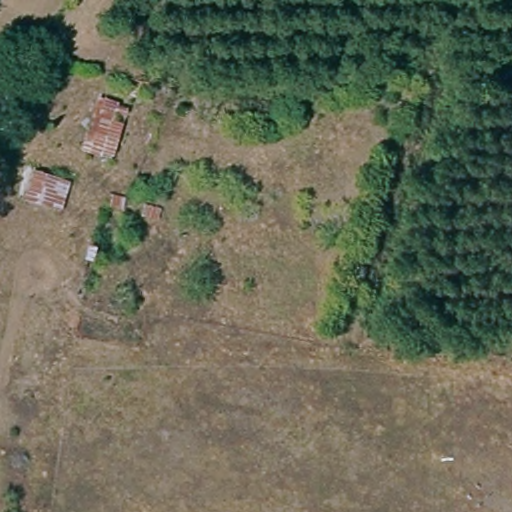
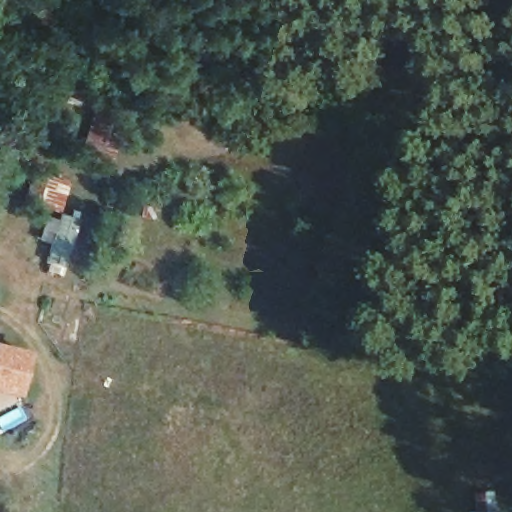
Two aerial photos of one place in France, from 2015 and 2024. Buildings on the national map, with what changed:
unchanged [(80,150),(100,95),(135,106),(116,164),(80,150)]
unchanged [(31,173),(75,185),(67,215),(23,205),(31,173)]
new [(20,397),(0,393),(0,345),(30,352),(20,397)]

